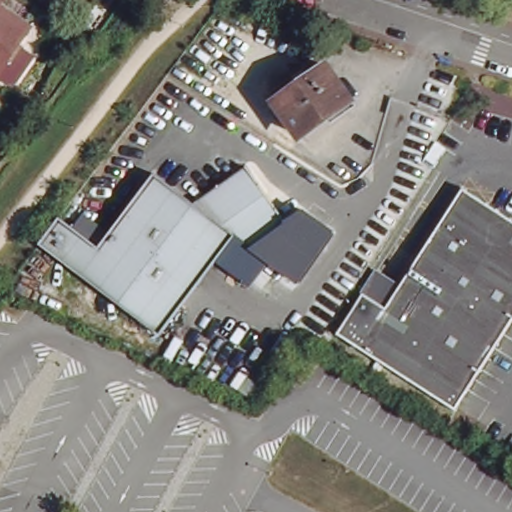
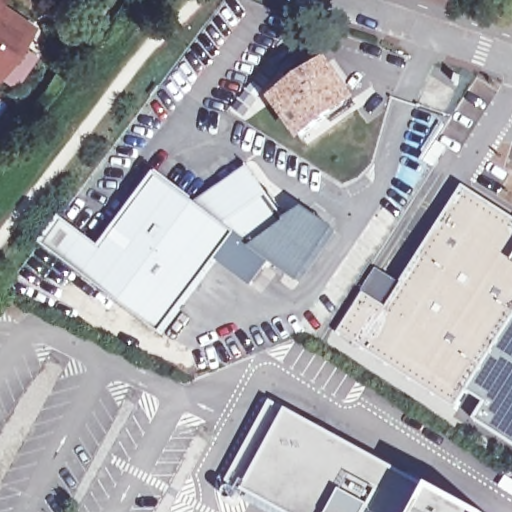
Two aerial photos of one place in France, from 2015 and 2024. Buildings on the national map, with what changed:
unchanged [(0,80),(0,0),(10,0),(5,7),(2,12),(34,34),(0,80)]
unchanged [(277,99),(327,64),(353,102),(304,137),(277,99)]
unchanged [(247,247),(232,236),(157,335),(36,243),(57,216),(95,246),(151,174),(191,205),(244,167),(282,222),(247,247)]
unchanged [(360,293),(377,266),(397,280),(462,180),(512,213),(512,315),(464,390),(460,396),(452,408),(341,337),(335,333),(360,293)]
new [(298,283),(268,261),(252,286),(219,262),(235,239),(247,247),(282,222),(285,225),(307,210),(336,230),(298,283)]
new [(512,442),(470,417),(480,400),(464,390),(512,315),(512,442)]
new [(438,491),(474,512),(267,512),(242,499),(246,490),(229,480),(270,401),(289,412),(438,491)]

